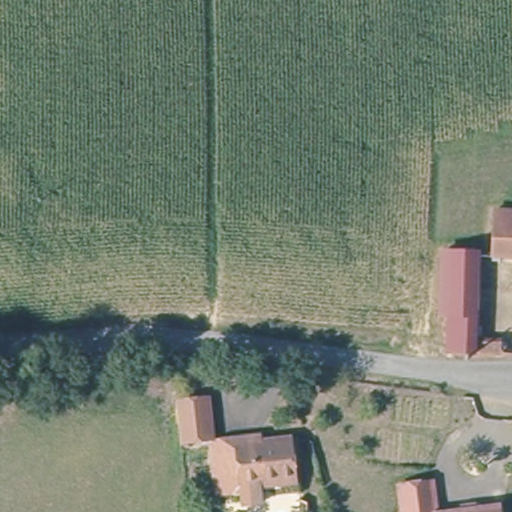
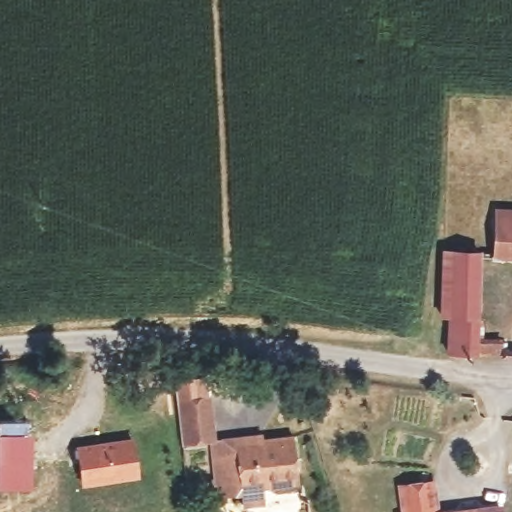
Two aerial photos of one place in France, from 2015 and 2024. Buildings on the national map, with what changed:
unchanged [(496,255),(496,252),(496,211),(512,212),(512,256),(496,255)]
unchanged [(455,310),(448,310),(451,245),(483,247),(484,310),(474,312),(475,334),(506,334),(506,348),(453,346),(453,323),(455,310)]
unchanged [(216,445),(202,446),(187,448),(179,405),(195,403),(210,400),(216,445)]
new [(32,492),(0,492),(0,419),(30,419),(32,492)]
new [(134,438),(140,480),(80,485),(74,445),(134,438)]
unchanged [(248,486),(223,489),(216,445),(240,442),(264,439),(264,444),(296,440),(301,479),(302,486),(269,491),(270,502),(250,505),(248,486)]
unchanged [(400,501),(397,485),(430,481),(432,512),(395,512),(393,502),(400,501)]
unchanged [(496,512),(473,512),(496,510),(496,512)]

